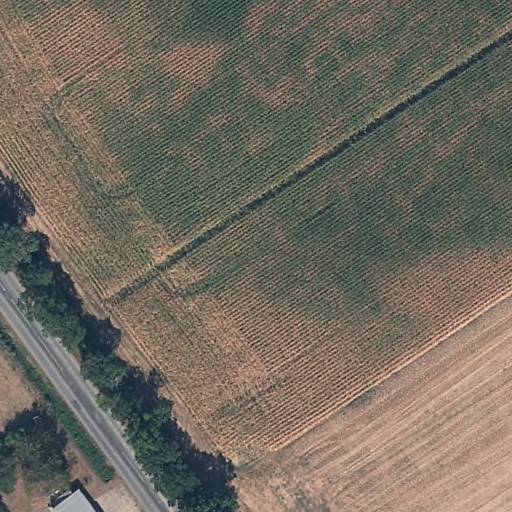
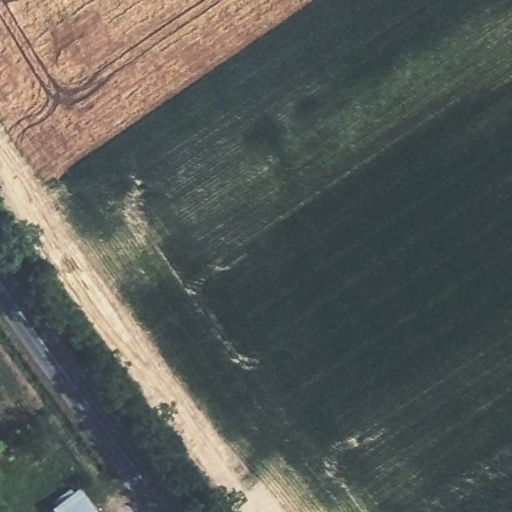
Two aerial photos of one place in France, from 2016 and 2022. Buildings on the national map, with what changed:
unchanged [(50,506),(71,487),(93,512),(54,512),(50,506)]

